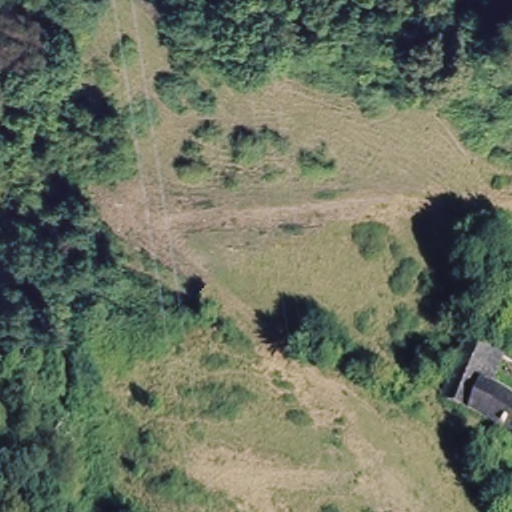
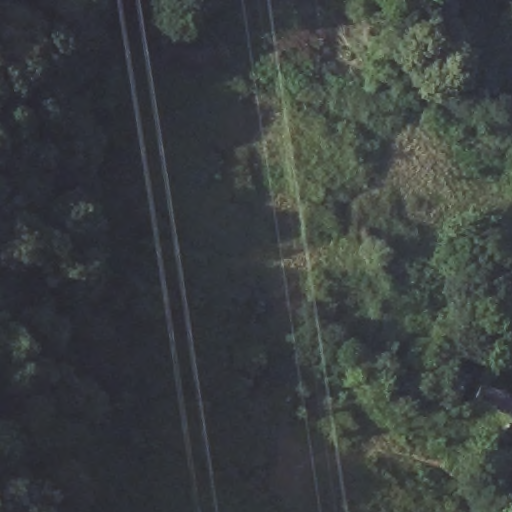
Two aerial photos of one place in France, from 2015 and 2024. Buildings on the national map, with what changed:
unchanged [(474,336),(508,354),(494,377),(512,390),(512,447),(487,430),(441,397),(474,336)]

